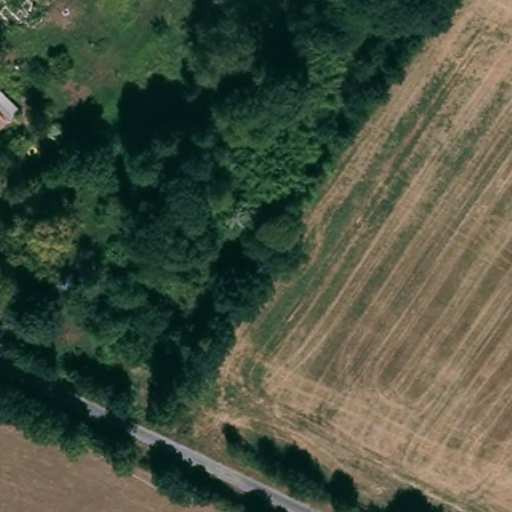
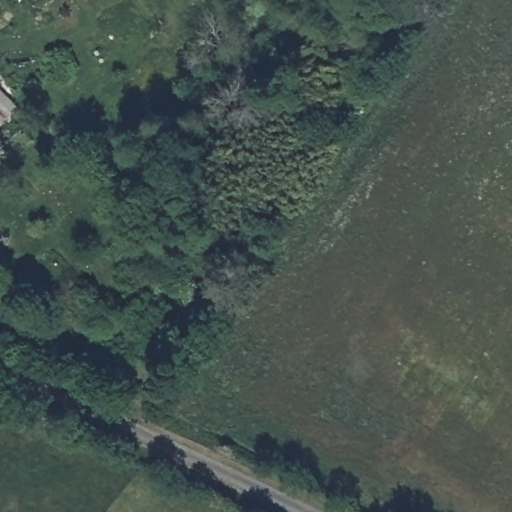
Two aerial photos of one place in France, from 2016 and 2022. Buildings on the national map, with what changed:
unchanged [(17,102),(15,105),(0,121),(0,87),(17,102)]

